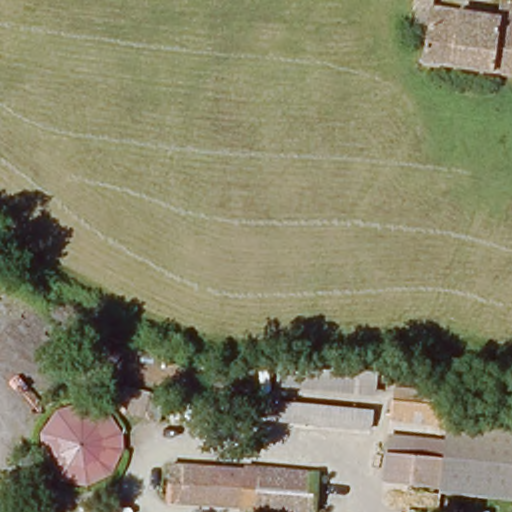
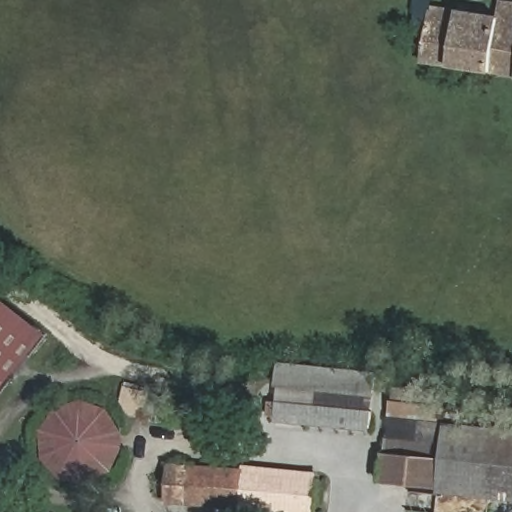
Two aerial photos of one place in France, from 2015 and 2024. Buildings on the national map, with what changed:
unchanged [(433,29),(425,28),(414,25),(419,0),(437,0),(437,7),(504,16),(507,3),(512,4),(512,76),(495,74),(429,64),(433,29)]
new [(0,396),(0,296),(49,334),(0,396)]
unchanged [(377,397),(279,388),(282,362),(379,371),(377,397)]
unchanged [(161,423),(133,416),(123,402),(125,386),(166,396),(161,423)]
unchanged [(389,421),(389,412),(389,404),(391,391),(422,392),(422,407),(446,407),(446,412),(446,424),(389,421)]
unchanged [(116,472),(105,482),(89,487),(71,484),(56,474),(45,456),(44,430),(56,411),(74,402),(89,403),(107,410),(124,432),(126,449),(116,472)]
unchanged [(369,408),(374,408),(374,425),(371,425),(278,422),(279,405),(369,408)]
unchanged [(452,493),(454,423),(512,426),(512,495),(452,493)]
unchanged [(386,440),(444,443),(443,460),(385,460),(386,440)]
unchanged [(443,460),(441,492),(384,490),(385,460),(443,460)]
unchanged [(171,502),(174,465),(322,472),(319,508),(171,502)]

